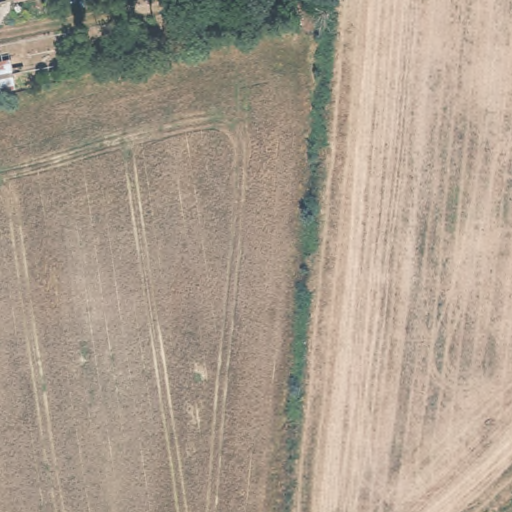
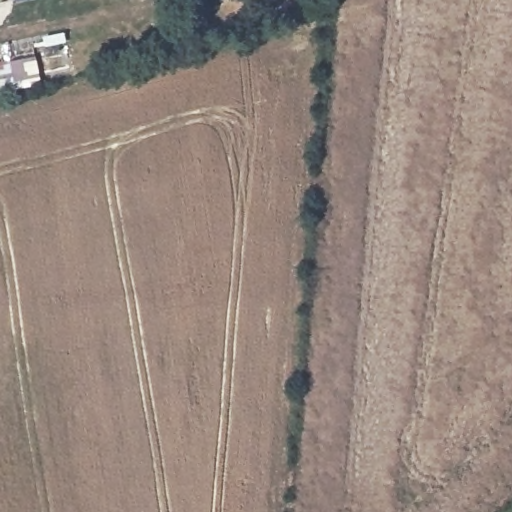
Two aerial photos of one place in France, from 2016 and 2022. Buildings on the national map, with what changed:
unchanged [(14,58),(15,87),(2,87),(0,58),(14,58)]

